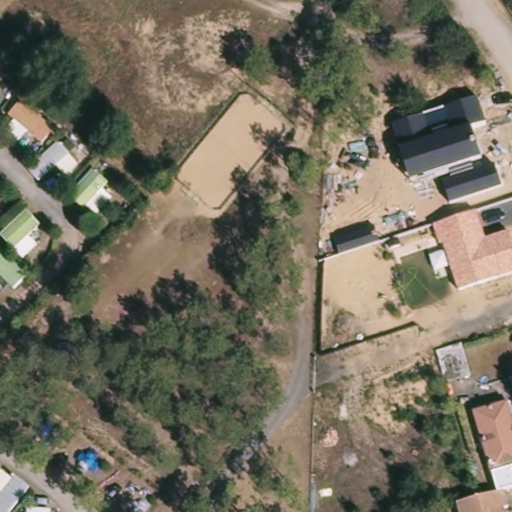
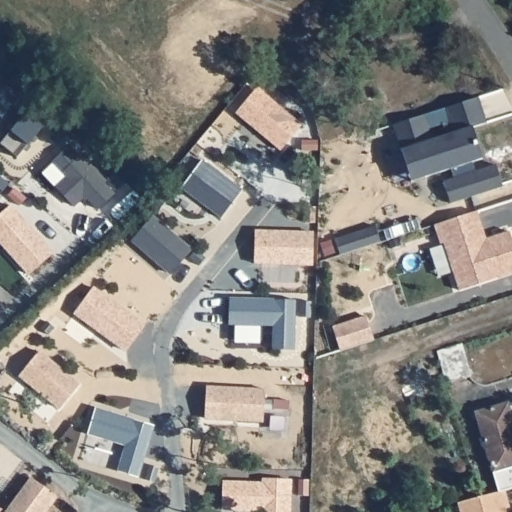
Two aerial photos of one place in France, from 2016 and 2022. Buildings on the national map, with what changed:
new [(11,131),(0,120),(0,87),(44,125),(28,144),(16,156),(1,144),(11,131)]
new [(236,113),(257,87),(302,123),(281,151),(236,113)]
unchanged [(487,125),(473,130),(482,161),(472,164),(475,172),(497,166),(505,187),(448,205),(441,182),(451,178),(448,169),(410,181),(401,150),(398,152),(391,125),(478,98),(487,125)]
new [(61,177),(60,175),(61,174),(51,162),(73,145),(106,181),(106,185),(114,194),(98,210),(86,199),(85,201),(82,199),(74,205),(55,185),(61,177)]
new [(182,187),(202,159),(242,189),(221,217),(182,187)]
new [(0,214),(10,205),(52,252),(27,274),(0,245),(0,214)]
unchanged [(477,211),(485,238),(512,230),(512,272),(457,291),(442,245),(438,245),(433,226),(477,211)]
new [(131,241),(153,217),(191,249),(170,274),(131,241)]
new [(254,230),(313,231),(314,266),(254,265),(254,230)]
new [(93,287),(144,325),(126,351),(74,313),(93,287)]
new [(230,298),(296,300),(295,350),(273,350),(272,326),(229,325),(230,298)]
demolished [(463,357),(433,369),(421,333),(449,326),(463,357)]
new [(475,377),(445,389),(433,353),(461,346),(475,377)]
new [(31,387),(32,385),(20,375),(39,351),(79,383),(60,408),(31,387)]
new [(205,419),(206,386),(265,389),(264,422),(205,419)]
unchanged [(511,405),(512,410),(512,469),(487,475),(470,414),(511,405)]
new [(139,476),(118,470),(125,445),(88,433),(95,407),(153,426),(139,476)]
unchanged [(493,473),(512,469),(512,487),(506,488),(497,490),(496,491),(492,473),(493,473)]
new [(4,512),(30,477),(56,497),(45,512),(4,512)]
new [(262,482),(262,477),(291,478),(289,512),(222,512),(223,480),(262,482)]
unchanged [(506,488),(510,506),(506,506),(507,512),(462,512),(459,501),(506,488)]

